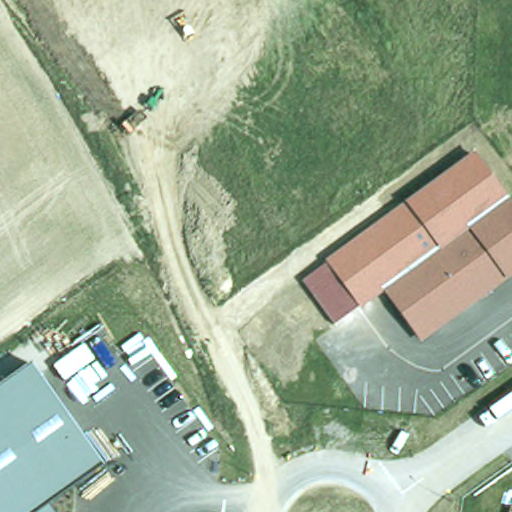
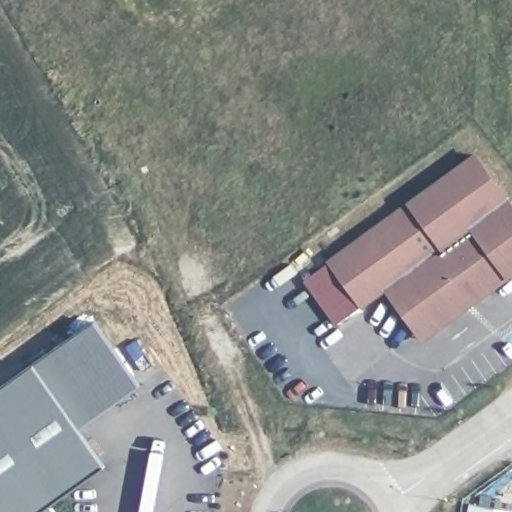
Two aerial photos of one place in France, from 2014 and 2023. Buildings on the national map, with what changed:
unchanged [(380,287),(329,324),(294,275),(473,150),(504,197),(380,287)]
unchanged [(512,207),(512,278),(421,344),(380,287),(504,197),(512,207)]
new [(94,320),(141,387),(78,430),(31,365),(94,320)]
unchanged [(47,506),(51,512),(0,512),(0,386),(31,365),(104,466),(47,506)]

